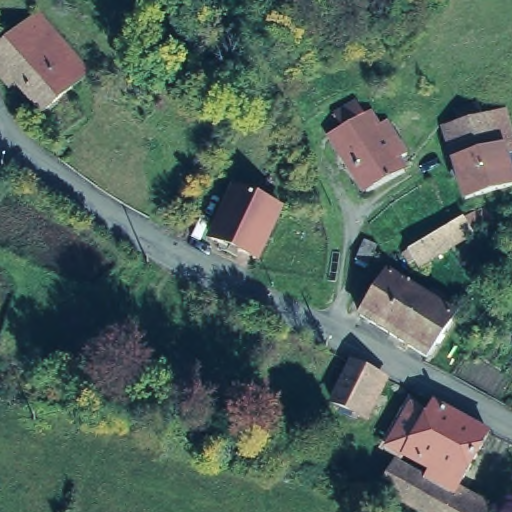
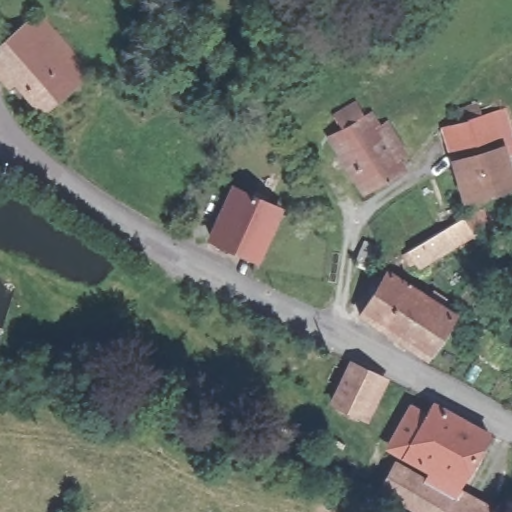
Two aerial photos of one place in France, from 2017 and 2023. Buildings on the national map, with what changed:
unchanged [(89,71),(45,110),(16,80),(9,85),(0,75),(0,42),(36,11),(89,71)]
unchanged [(337,113),(349,105),(358,117),(369,112),(381,129),(389,124),(409,155),(401,160),(407,171),(371,192),(333,134),(344,126),(337,113)]
unchanged [(502,172),(508,189),(459,202),(438,131),(458,124),(454,113),(470,108),(474,119),(494,113),(509,157),(512,168),(502,172)]
unchanged [(218,250),(221,244),(211,239),(236,189),(279,209),(256,260),(239,253),(235,259),(218,250)]
unchanged [(459,218),(469,232),(418,269),(412,261),(408,263),(403,253),(459,218)]
unchanged [(376,249),(365,268),(354,262),(364,243),(376,249)]
unchanged [(421,298),(426,293),(440,302),(436,308),(446,315),(419,356),(354,315),(382,273),(421,298)]
unchanged [(343,371),(348,362),(376,376),(353,418),(326,404),(343,371)]
unchanged [(495,512),(413,512),(412,512),(426,485),(429,477),(403,462),(404,459),(392,451),(417,413),(426,418),(433,404),(438,407),(493,439),(463,492),(495,512)]
unchanged [(380,494),(394,468),(426,485),(412,512),(380,494)]

